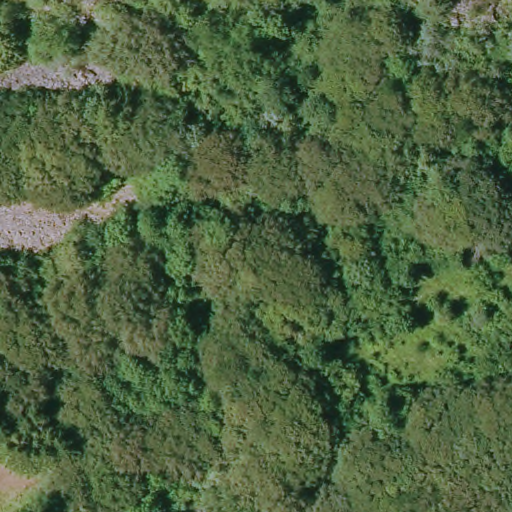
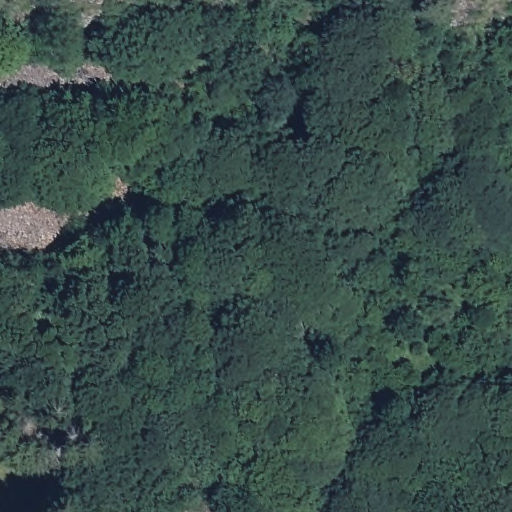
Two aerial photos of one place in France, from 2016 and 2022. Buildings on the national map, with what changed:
[]

